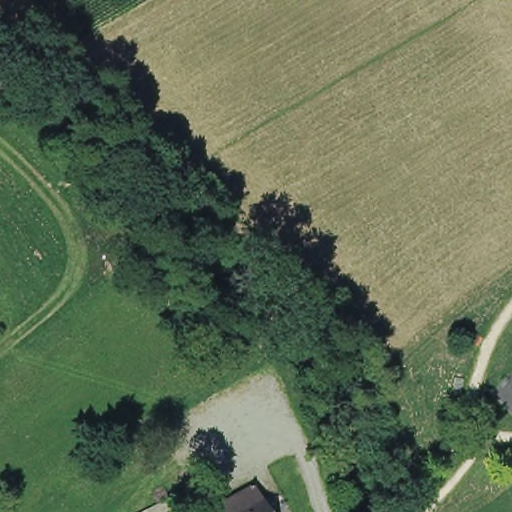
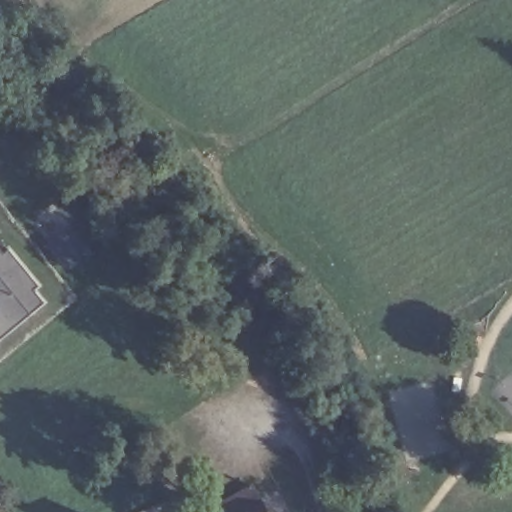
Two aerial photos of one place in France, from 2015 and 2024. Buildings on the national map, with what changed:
new [(87,253),(67,270),(48,246),(66,230),(87,253)]
new [(7,252),(37,285),(30,291),(40,303),(0,337),(0,250),(2,253),(7,252)]
unchanged [(257,485),(270,512),(216,512),(257,485)]

